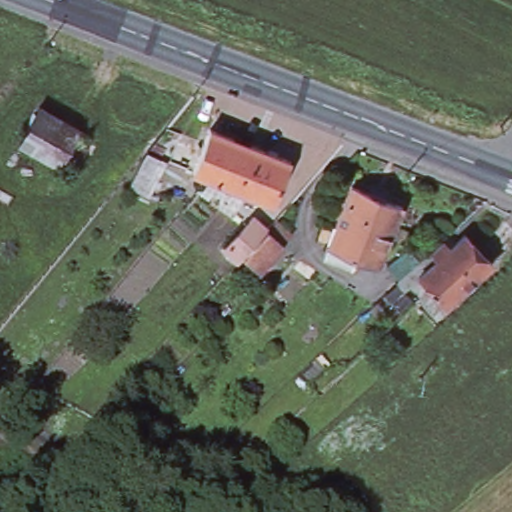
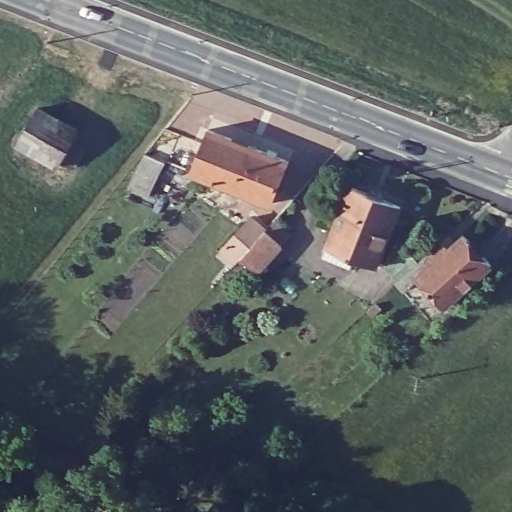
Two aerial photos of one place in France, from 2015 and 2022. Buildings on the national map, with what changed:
unchanged [(57,172),(15,148),(37,104),(82,130),(57,172)]
unchanged [(251,146),(234,189),(192,173),(209,129),(251,146)]
unchanged [(290,163),(273,205),(234,189),(251,146),(290,163)]
unchanged [(402,203),(374,271),(324,251),(353,182),(402,203)]
unchanged [(282,245),(255,272),(242,260),(239,263),(225,251),(245,228),(254,219),(267,232),(279,242),(282,245)]
unchanged [(452,245),(457,250),(472,237),(500,267),(455,309),(427,278),(411,293),(405,285),(439,254),(440,255),(452,245)]

